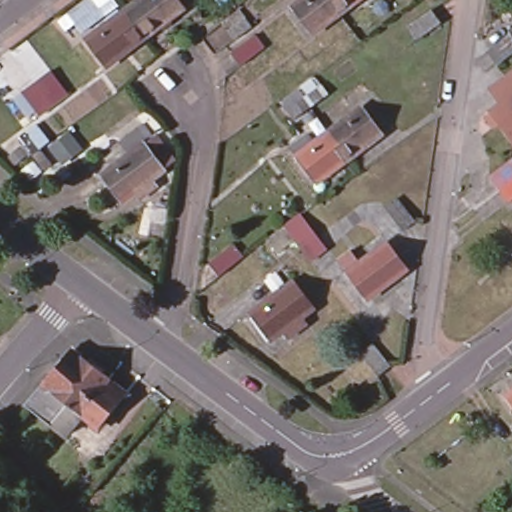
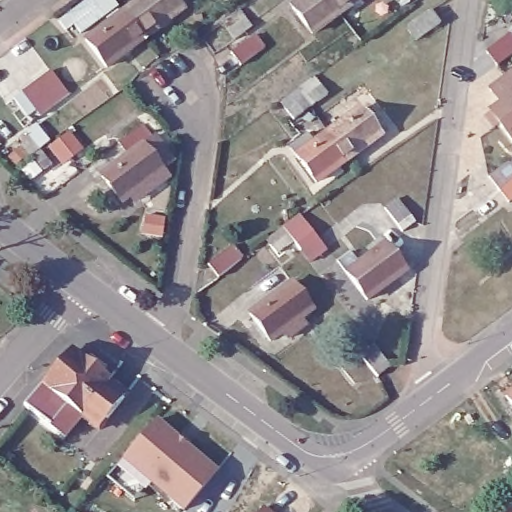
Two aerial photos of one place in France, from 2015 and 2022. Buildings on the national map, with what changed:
unchanged [(81,44),(106,25),(102,21),(113,13),(116,17),(121,13),(138,0),(177,0),(181,5),(142,37),(102,68),(81,44)]
unchanged [(315,30),(297,9),(309,0),(356,0),(315,30)]
unchanged [(433,12),(442,25),(418,42),(408,29),(433,12)]
unchanged [(512,58),(498,67),(488,55),(512,36),(512,58)]
unchanged [(497,101),(486,87),(512,68),(512,142),(486,109),(497,101)]
unchanged [(305,116),(295,123),(288,114),(283,106),(300,93),(316,81),(330,98),(312,110),(310,107),(303,113),(305,116)]
unchanged [(12,112),(20,105),(33,95),(52,116),(38,126),(35,121),(26,128),(12,112)]
unchanged [(292,150),(308,138),(309,138),(313,135),(320,143),(331,135),(363,110),(383,136),(345,165),(318,185),(298,159),(292,150)]
unchanged [(48,149),(38,157),(50,173),(42,179),(30,163),(18,146),(36,132),(48,149)]
unchanged [(167,162),(156,171),(163,180),(150,191),(155,197),(137,211),(133,204),(120,215),(100,188),(128,166),(118,153),(143,133),(153,147),(155,145),(167,162)]
unchanged [(69,138),(80,154),(60,170),(48,155),(69,138)]
unchanged [(512,199),(510,200),(500,187),(490,175),(512,158),(512,199)]
unchanged [(416,228),(403,239),(385,217),(398,206),(416,228)]
unchanged [(264,238),(280,224),(297,212),(314,235),(297,247),(290,238),(274,251),(264,238)]
unchanged [(407,273),(368,304),(347,276),(386,246),(407,273)]
unchanged [(205,274),(228,255),(238,268),(215,287),(205,274)]
unchanged [(318,311),(305,321),(310,328),(293,341),(288,334),(276,344),(257,316),(297,285),(318,311)]
unchanged [(376,377),(359,355),(372,344),(386,362),(390,367),(376,377)]
unchanged [(57,425),(32,404),(49,384),(71,359),(77,352),(83,358),(88,353),(117,377),(113,382),(131,398),(105,429),(87,415),(70,436),(57,425)]
unchanged [(512,397),(512,410),(506,402),(512,397)]
new [(184,512),(181,512),(148,483),(133,500),(107,477),(157,419),(220,472),(184,512)]
unchanged [(512,463),(512,478),(505,468),(512,463)]
new [(271,512),(258,512),(263,506),(271,512)]

